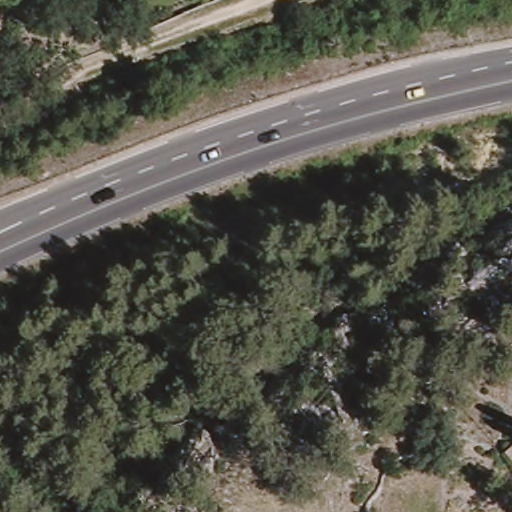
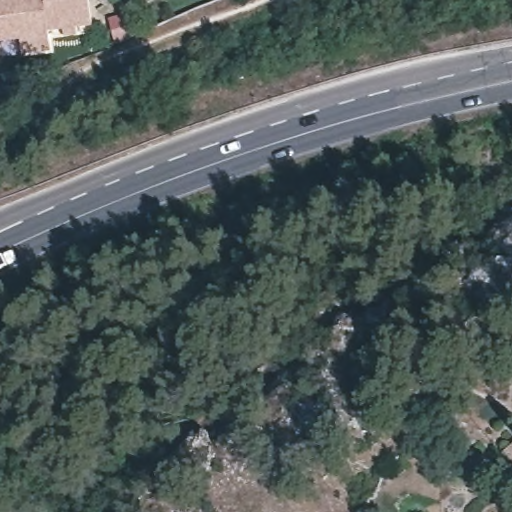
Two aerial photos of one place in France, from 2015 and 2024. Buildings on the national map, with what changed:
new [(78,29),(79,36),(64,38),(63,31),(49,32),(52,51),(22,55),(20,40),(0,43),(0,0),(90,0),(93,27),(78,29)]
new [(127,8),(133,35),(112,40),(107,14),(127,8)]

